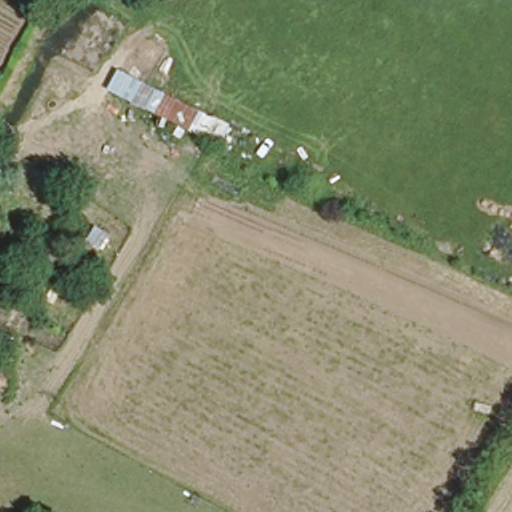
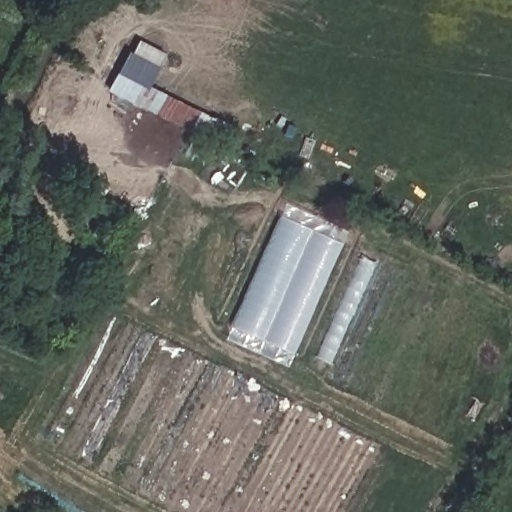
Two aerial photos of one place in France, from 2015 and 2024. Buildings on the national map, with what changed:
unchanged [(221,148),(111,92),(121,71),(234,124),(221,148)]
new [(280,214),(343,244),(294,353),(230,326),(280,214)]
new [(362,255),(377,262),(329,362),(315,357),(362,255)]

